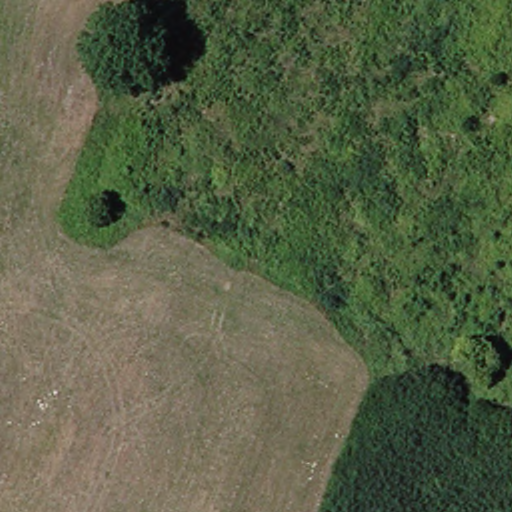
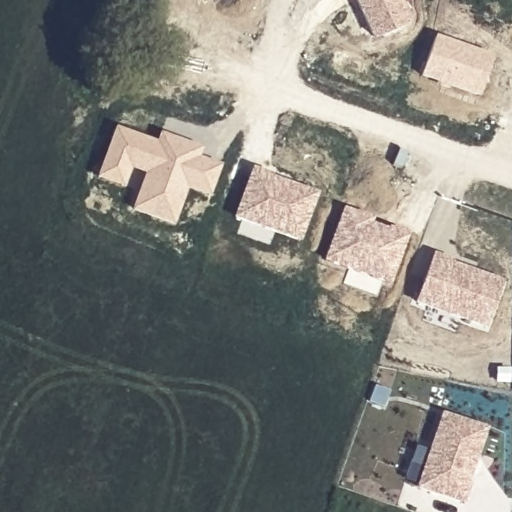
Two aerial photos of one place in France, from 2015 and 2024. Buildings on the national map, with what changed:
new [(373,36),(356,0),(402,0),(411,19),(373,36)]
new [(494,55),(479,98),(420,77),(436,34),(494,55)]
new [(134,204),(145,174),(130,169),(122,187),(97,179),(117,126),(156,141),(160,133),(197,145),(195,151),(199,156),(221,165),(210,196),(187,188),(176,219),(134,204)]
new [(238,215),(236,211),(252,168),(313,190),(298,237),(238,215)]
new [(371,224),(387,230),(388,225),(409,233),(391,285),(322,261),(342,208),(374,218),(371,224)]
new [(503,279),(486,325),(418,300),(435,254),(503,279)]
new [(463,499),(417,486),(441,412),(485,427),(463,499)]

